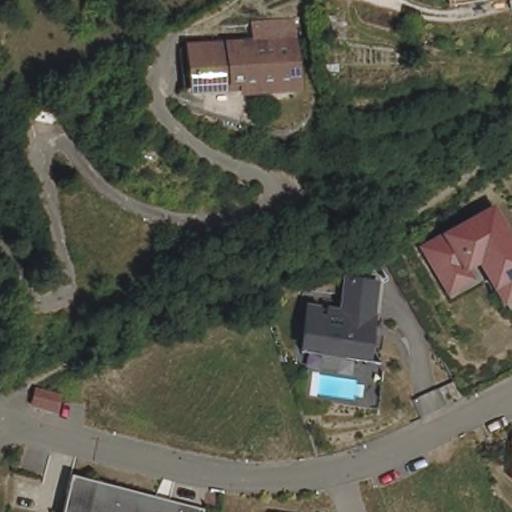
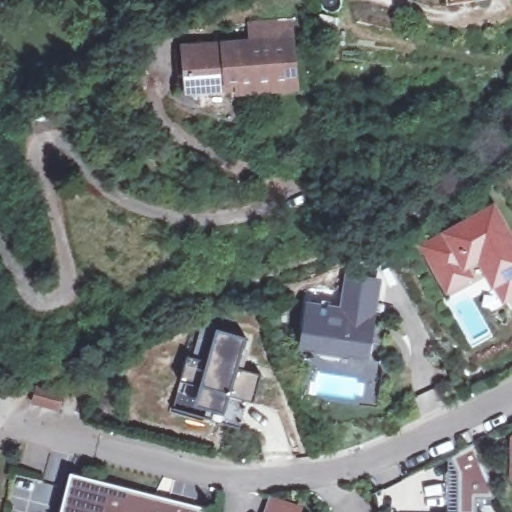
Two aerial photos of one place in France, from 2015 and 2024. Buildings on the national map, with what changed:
unchanged [(448,0),(486,0),(449,5),(448,0)]
unchanged [(274,86),(274,91),(238,94),(238,82),(188,87),(184,45),(234,40),(234,47),(286,42),(288,63),(296,62),(295,83),(274,86)]
unchanged [(484,205),(495,223),(490,226),(494,232),(499,230),(512,254),(512,259),(487,272),(473,246),(436,267),(421,240),(484,205)]
unchanged [(299,347),(306,302),(339,307),(345,273),(376,278),(371,312),(366,312),(363,328),(368,329),(364,357),(336,352),(319,350),(299,347)]
new [(193,357),(213,362),(222,330),(253,338),(244,369),(267,376),(259,403),(253,401),(218,390),(211,419),(178,410),(193,357)]
new [(218,390),(253,401),(244,429),(211,419),(218,390)]
unchanged [(53,399),(63,402),(59,416),(39,411),(34,410),(38,395),(53,399)]
unchanged [(509,477),(508,438),(512,435),(512,481),(509,477)]
new [(448,457),(474,444),(492,487),(493,500),(477,500),(476,512),(448,512),(448,457)]
unchanged [(200,512),(63,512),(71,477),(201,508),(200,512)]

